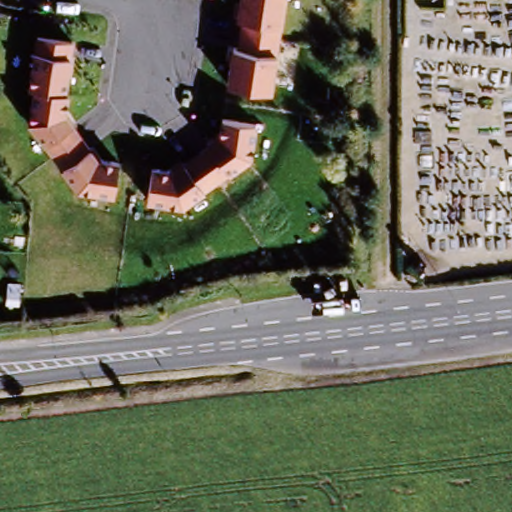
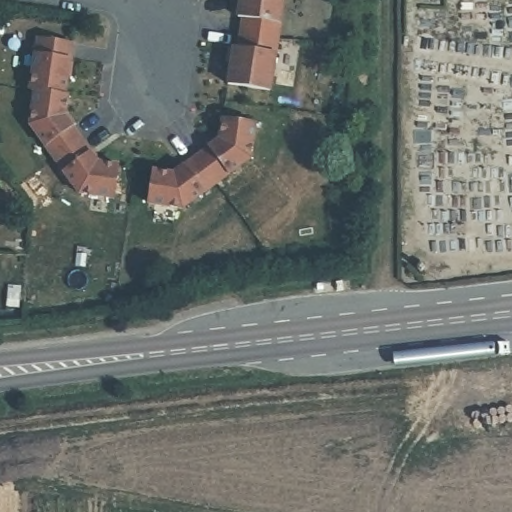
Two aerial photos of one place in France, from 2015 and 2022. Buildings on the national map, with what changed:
unchanged [(239,24),(234,22),(238,0),(281,0),(275,44),(237,38),(239,24)]
unchanged [(24,91),(32,38),(67,42),(60,95),(29,91),(24,91)]
unchanged [(268,95),(225,90),(230,53),(235,54),(237,38),(275,44),(268,95)]
unchanged [(50,160),(25,126),(29,91),(60,95),(63,96),(60,117),(77,140),(50,160)]
unchanged [(221,139),(223,119),(257,124),(252,159),(218,185),(198,157),(221,139)]
unchanged [(114,166),(110,199),(74,194),(50,160),(77,140),(92,163),(114,166)]
unchanged [(185,210),(149,204),(153,172),(175,175),(198,157),(218,185),(185,210)]

